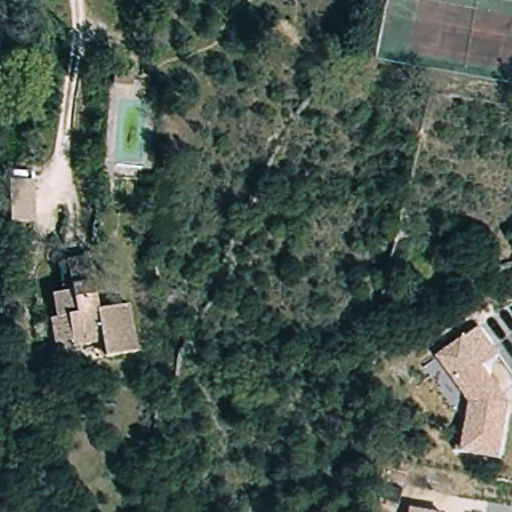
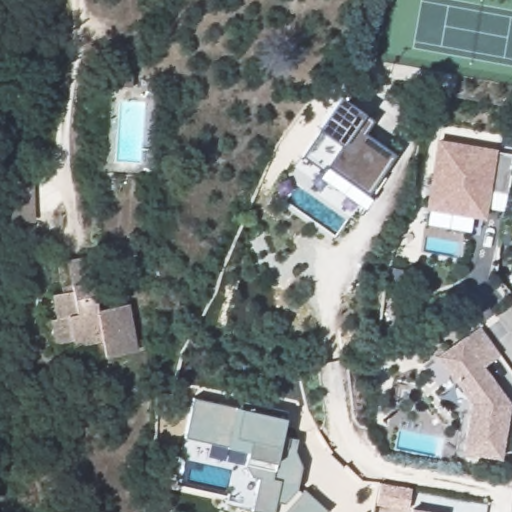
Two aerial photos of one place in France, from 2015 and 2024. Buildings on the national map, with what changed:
new [(321,171),(301,156),(320,132),(316,129),(339,96),(365,114),(373,121),(364,133),(394,155),(366,196),(326,167),(321,171)]
new [(437,141),(498,151),(512,154),(512,169),(507,196),(490,193),(485,221),(425,210),(437,141)]
unchanged [(114,362),(86,363),(86,338),(58,337),(60,308),(46,306),(47,283),(66,282),(67,274),(68,254),(93,255),(92,273),(90,308),(116,308),(114,362)]
unchanged [(484,364),(511,402),(499,459),(462,452),(470,405),(438,359),(463,339),(480,328),(498,354),(484,364)]
new [(236,406),(238,399),(287,410),(286,417),(281,433),(297,437),(294,450),(301,465),(296,488),(301,491),(303,488),(326,510),(324,512),(272,512),(271,511),(251,509),(257,476),(250,475),(243,464),(245,454),(246,450),(225,445),(184,436),(193,397),(236,406)]
unchanged [(412,506),(439,512),(411,512),(412,506)]

